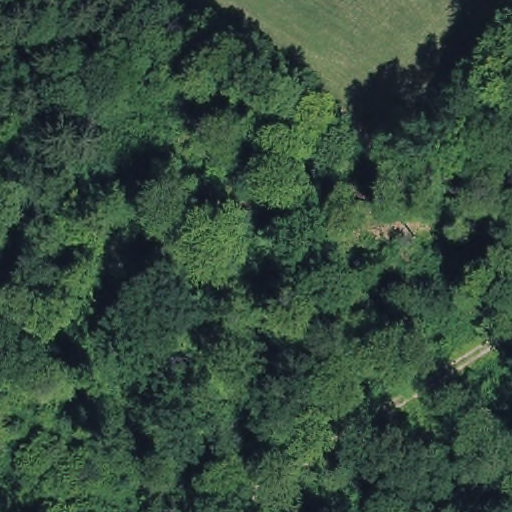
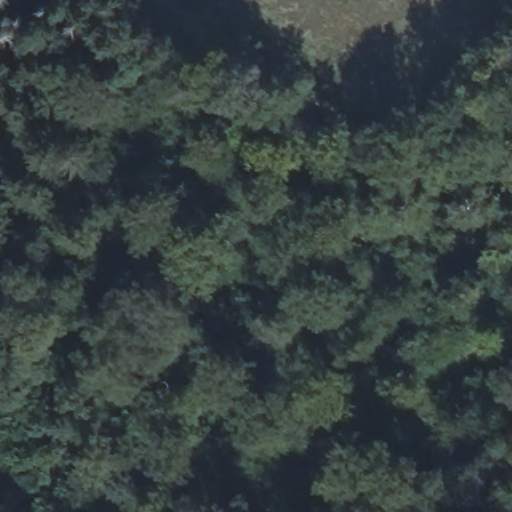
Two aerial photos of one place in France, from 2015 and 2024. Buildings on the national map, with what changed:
[]

